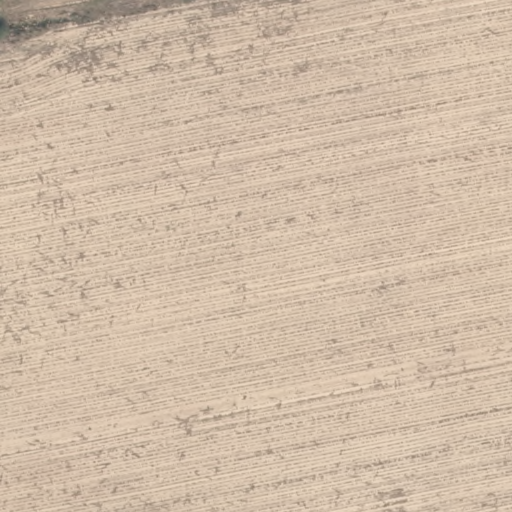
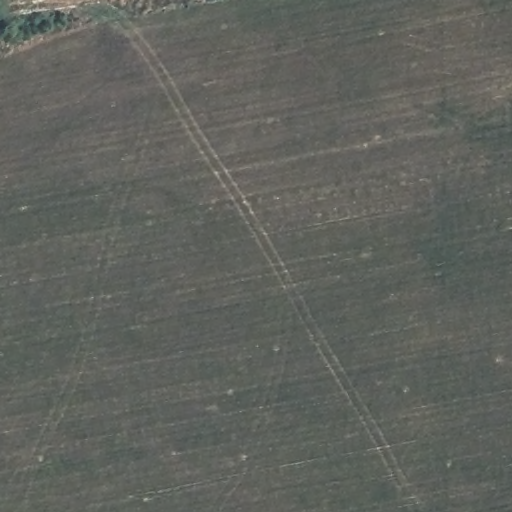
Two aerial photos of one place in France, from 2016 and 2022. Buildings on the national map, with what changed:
[]

